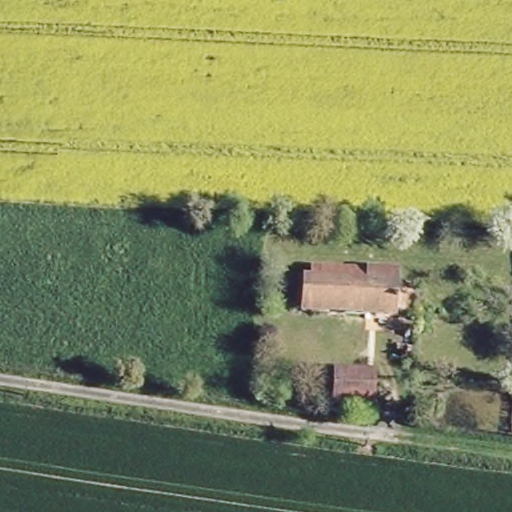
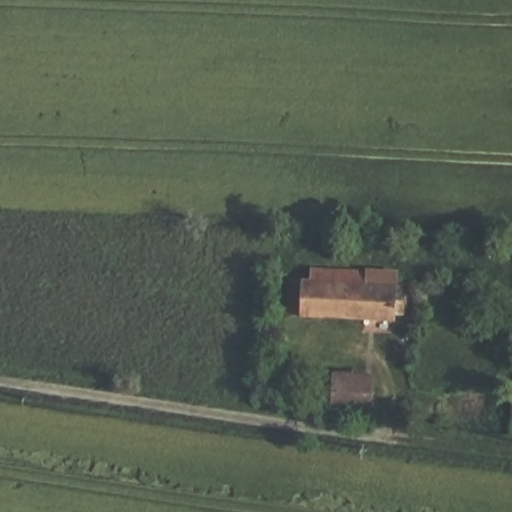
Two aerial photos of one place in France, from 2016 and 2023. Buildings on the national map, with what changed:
unchanged [(297,262),(398,270),(396,321),(294,311),(297,262)]
unchanged [(370,367),(371,412),(326,409),(332,363),(370,367)]

